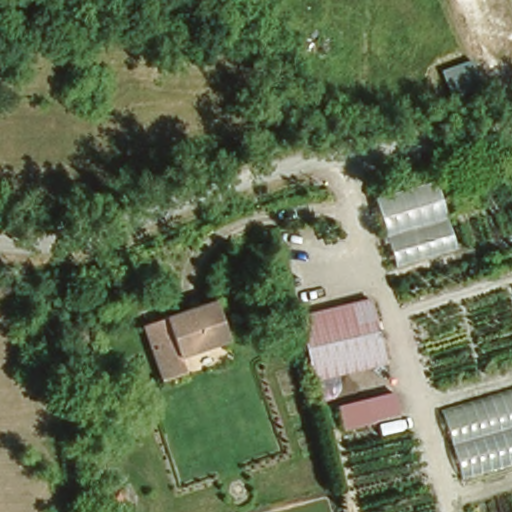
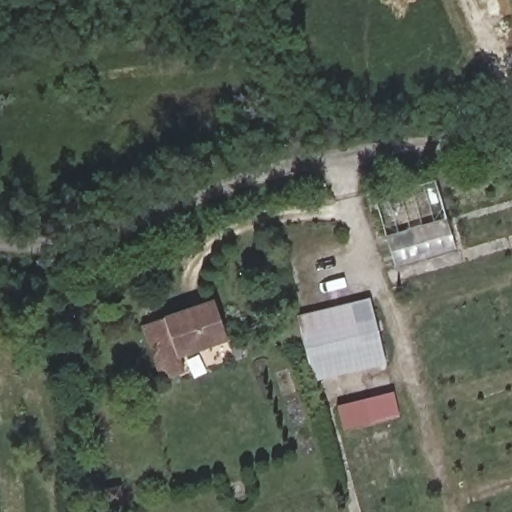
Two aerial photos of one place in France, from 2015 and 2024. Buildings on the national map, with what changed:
unchanged [(482,84),(451,95),(442,69),(472,58),(482,84)]
unchanged [(395,267),(375,196),(433,177),(455,248),(395,267)]
unchanged [(297,312),(367,294),(377,336),(306,351),(297,312)]
unchanged [(156,375),(139,316),(212,295),(223,336),(174,351),(179,368),(156,375)]
unchanged [(377,336),(382,355),(311,371),(306,351),(377,336)]
unchanged [(397,413),(343,426),(337,403),(391,389),(397,413)]
demolished [(512,390),(512,464),(462,479),(442,410),(512,390)]

